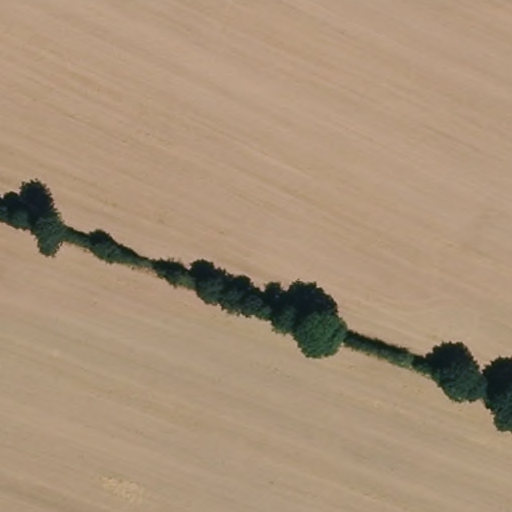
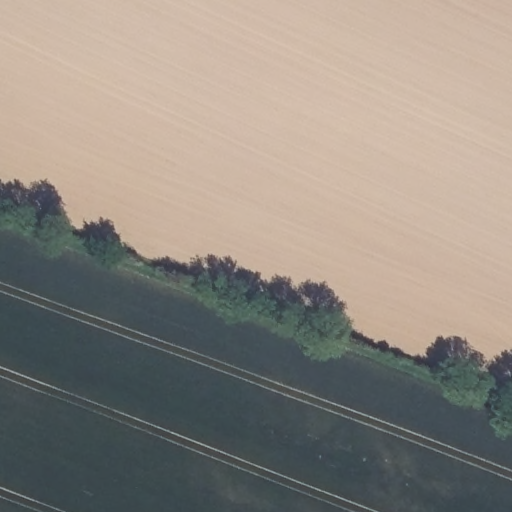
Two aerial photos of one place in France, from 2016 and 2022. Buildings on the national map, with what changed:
[]

